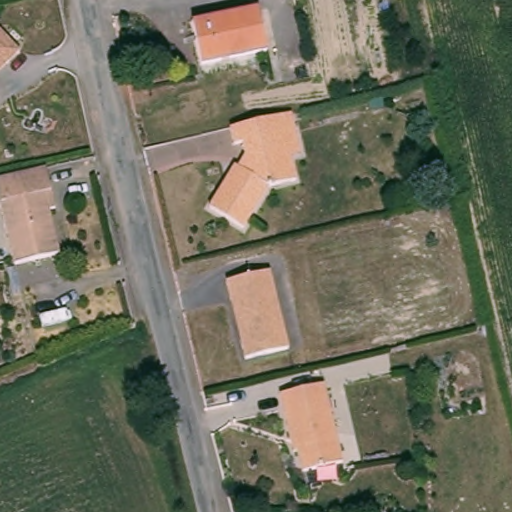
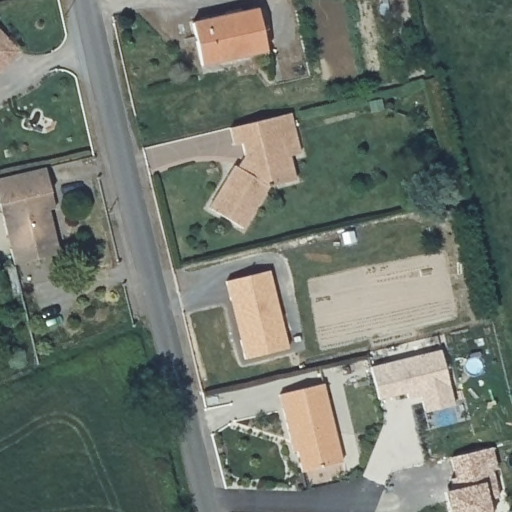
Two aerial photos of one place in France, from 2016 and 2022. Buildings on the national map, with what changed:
unchanged [(269,50),(204,64),(196,23),(260,8),(269,50)]
unchanged [(0,77),(0,29),(2,27),(26,52),(0,77)]
unchanged [(284,118),(293,159),(297,157),(303,182),(275,188),(248,229),(215,207),(242,166),(248,171),(254,162),(250,144),(242,146),(238,129),(284,118)]
unchanged [(0,178),(52,166),(61,212),(55,214),(64,251),(16,262),(0,188),(0,178)]
unchanged [(291,347),(245,360),(239,341),(249,338),(239,301),(229,303),(225,282),(273,271),(291,347)]
new [(445,352),(458,406),(429,413),(425,396),(412,399),(410,393),(382,400),(375,368),(445,352)]
unchanged [(348,461),(310,470),(303,436),(294,440),(284,395),(331,383),(348,461)]
new [(450,502),(448,492),(457,491),(454,480),(459,478),(454,458),(495,448),(500,470),(495,471),(502,498),(490,501),(493,512),(453,512),(450,502)]

